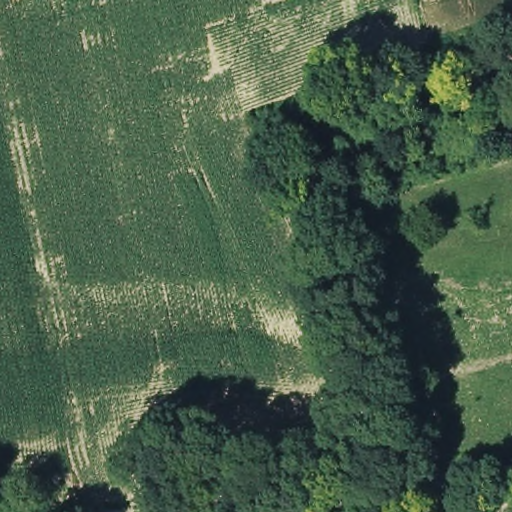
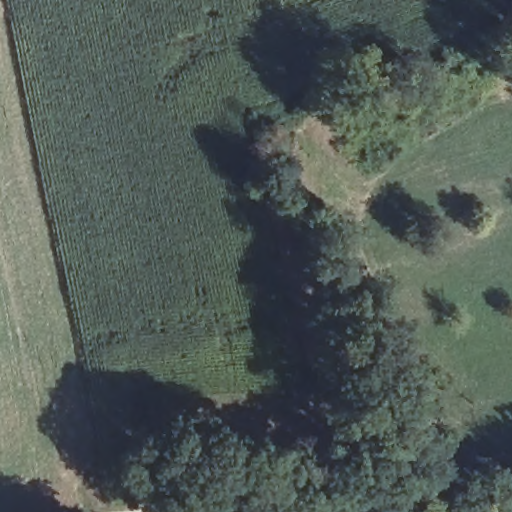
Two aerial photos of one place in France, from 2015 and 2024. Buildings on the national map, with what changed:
unchanged [(330,211),(334,229),(318,235),(311,218),(330,211)]

